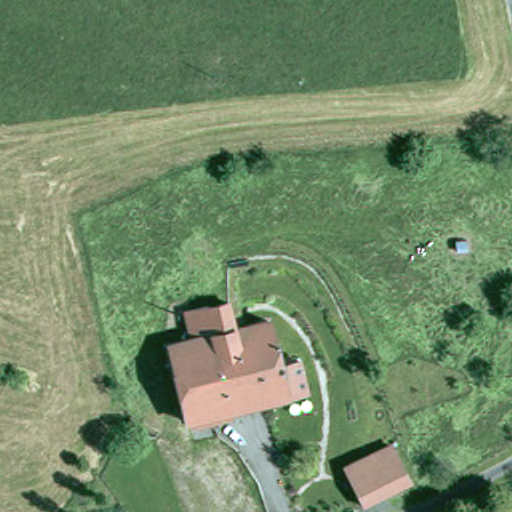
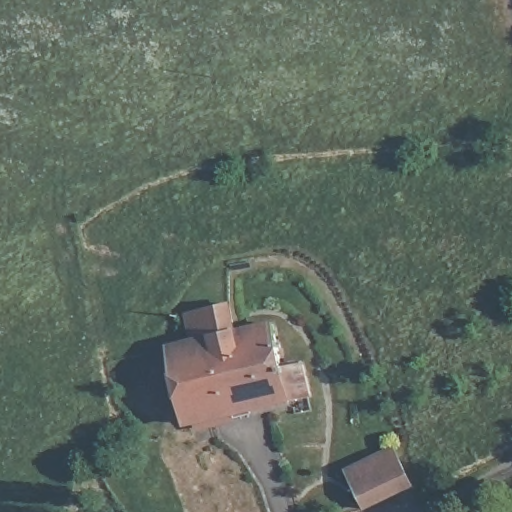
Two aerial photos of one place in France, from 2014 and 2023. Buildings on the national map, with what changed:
unchanged [(190,314),(234,304),(240,337),(197,347),(190,314)]
unchanged [(201,427),(192,429),(172,353),(197,347),(240,337),(275,329),(284,360),(297,357),(297,363),(300,367),(307,368),(309,368),(314,400),(201,427)]
unchanged [(345,471),(392,444),(413,489),(373,510),(374,512),(359,512),(364,509),(345,471)]

